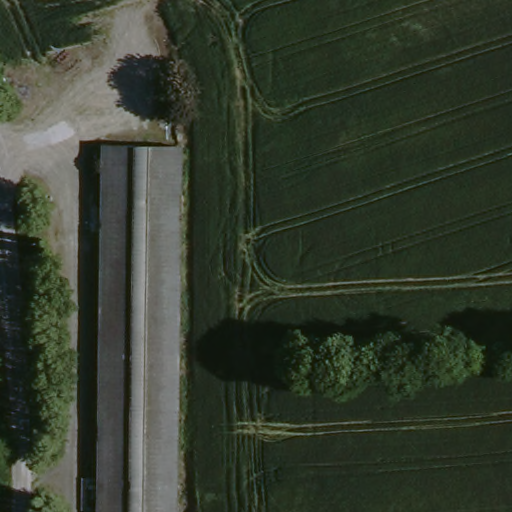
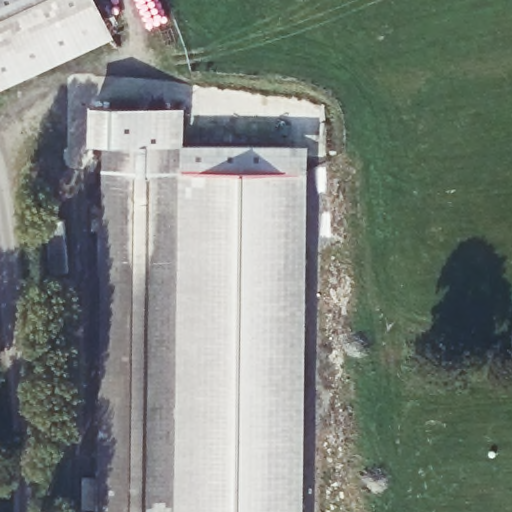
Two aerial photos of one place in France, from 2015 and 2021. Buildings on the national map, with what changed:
new [(293,146),(294,172),(308,174),(303,512),(174,512),(178,151),(177,144),(293,146)]
unchanged [(97,151),(142,151),(178,151),(174,512),(95,512),(96,459),(97,151)]

